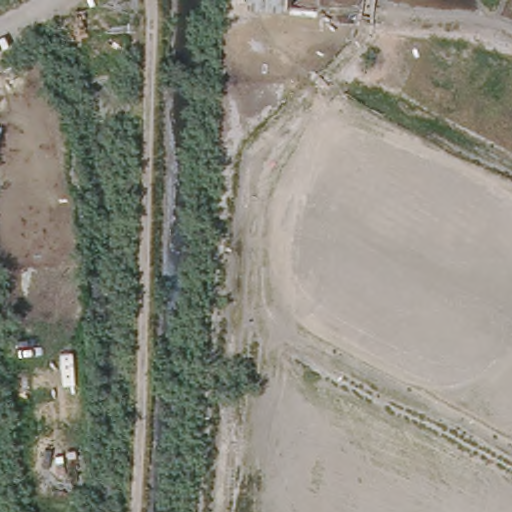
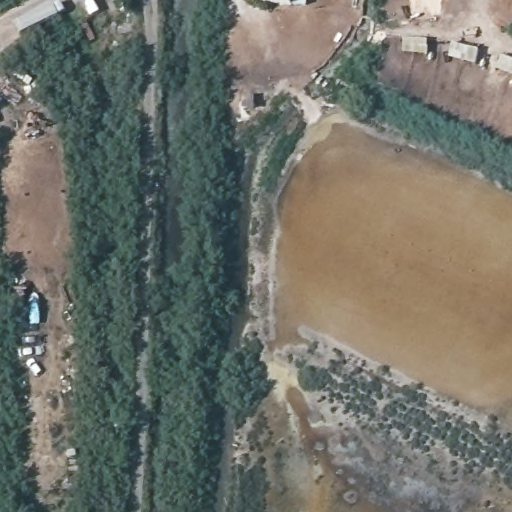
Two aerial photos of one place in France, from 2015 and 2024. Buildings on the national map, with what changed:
unchanged [(253,4),(253,0),(288,0),(287,7),(253,4)]
unchanged [(363,0),(363,7),(329,5),(329,0),(363,0)]

